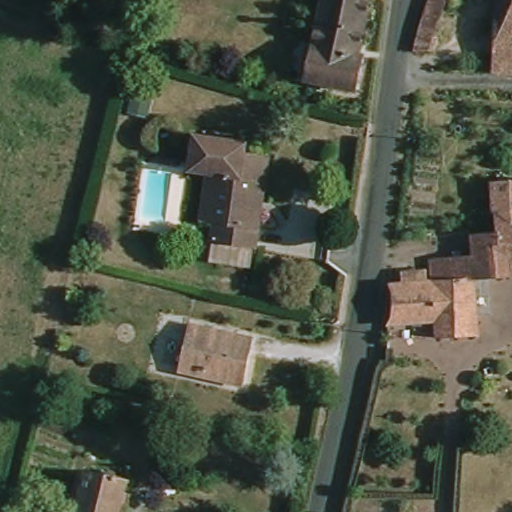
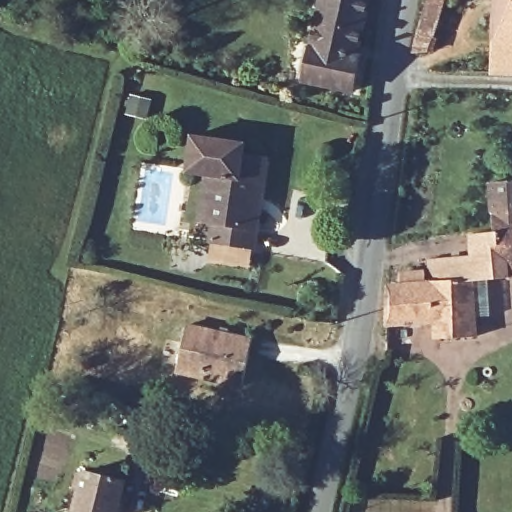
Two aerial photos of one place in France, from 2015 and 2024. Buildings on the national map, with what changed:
unchanged [(321,5),(323,0),(367,0),(355,47),(363,50),(354,86),(304,74),(313,38),(321,5)]
unchanged [(437,52),(423,52),(437,0),(449,0),(437,52)]
unchanged [(512,45),(496,45),(500,0),(512,0),(512,45)]
unchanged [(496,45),(512,45),(512,73),(495,72),(496,45)]
unchanged [(267,156),(249,241),(208,232),(211,217),(196,214),(212,144),(267,156)]
unchanged [(475,333),(434,337),(433,325),(385,326),(386,287),(428,283),(427,258),(471,256),(470,235),(493,232),(492,183),(512,181),(512,274),(472,277),(475,333)]
unchanged [(248,385),(176,369),(188,322),(257,336),(248,385)]
unchanged [(85,470),(126,480),(119,512),(87,512),(76,510),(85,470)]

